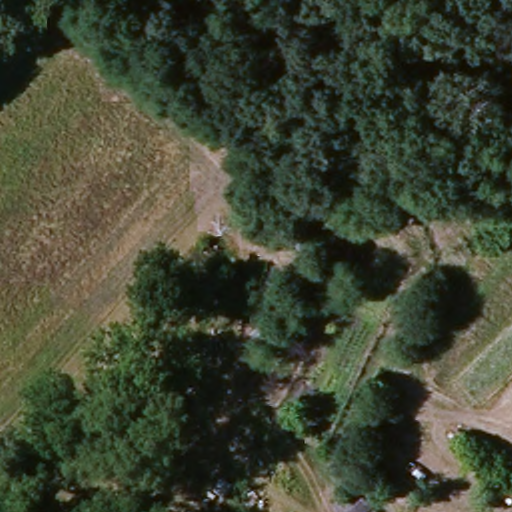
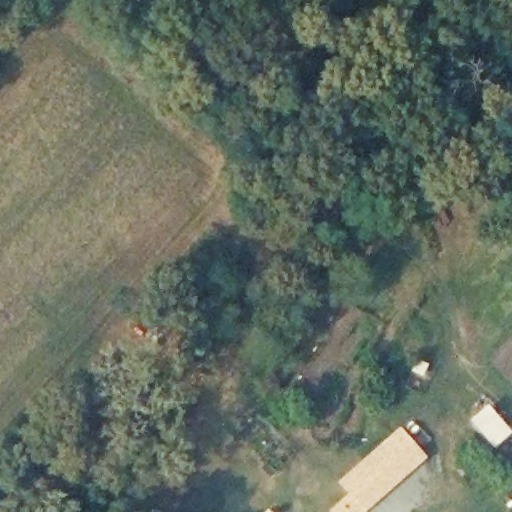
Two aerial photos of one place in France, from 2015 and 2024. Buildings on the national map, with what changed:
new [(347,494),(337,482),(393,432),(403,445),(409,440),(415,446),(411,450),(422,462),(365,512),(329,512),(328,511),(347,494)]
demolished [(351,498),(360,512),(333,512),(351,498)]

